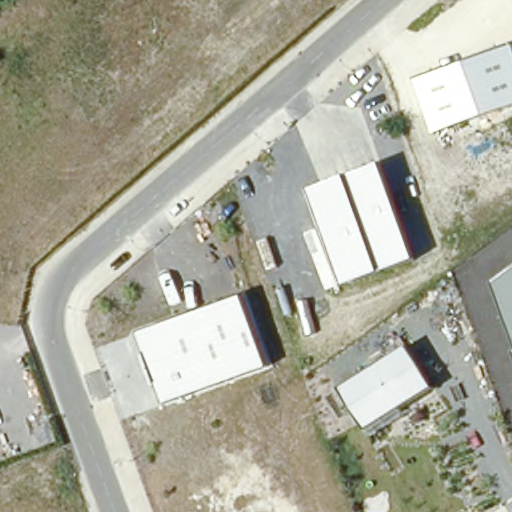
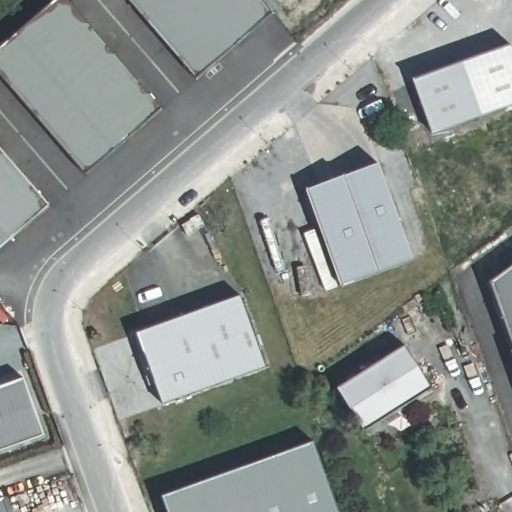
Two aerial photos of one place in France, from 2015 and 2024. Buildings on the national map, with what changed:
new [(86,174),(0,73),(0,50),(58,0),(67,0),(161,110),(86,174)]
new [(271,13),(197,77),(130,0),(260,0),(271,13)]
unchanged [(512,45),(512,106),(433,135),(413,80),(512,45)]
new [(0,248),(0,150),(48,207),(0,248)]
unchanged [(380,273),(343,285),(308,189),(345,176),(346,176),(382,163),(415,260),(380,273)]
unchanged [(494,285),(512,271),(512,333),(494,285)]
unchanged [(165,405),(140,332),(242,297),(268,367),(165,405)]
unchanged [(432,388),(366,430),(339,390),(406,347),(432,388)]
new [(50,433),(0,451),(0,387),(29,377),(50,433)]
new [(169,512),(164,497),(314,442),(339,512),(169,512)]
new [(9,512),(0,512),(0,501),(5,500),(9,512)]

